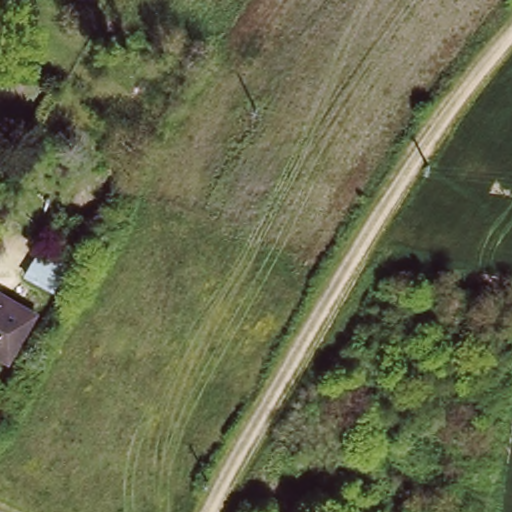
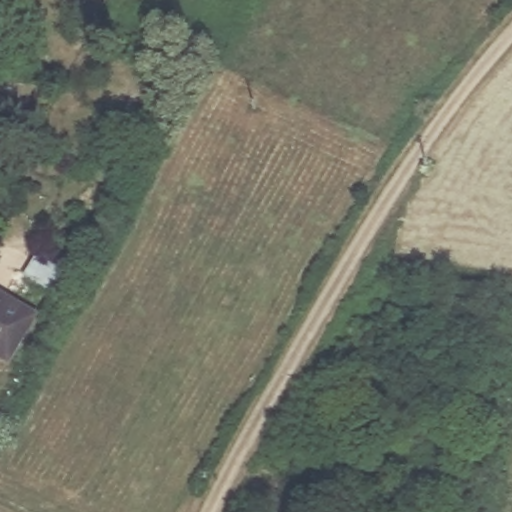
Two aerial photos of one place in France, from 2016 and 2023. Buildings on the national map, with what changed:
unchanged [(105,13),(104,33),(70,31),(71,11),(105,13)]
unchanged [(49,262),(74,276),(64,297),(38,283),(49,262)]
unchanged [(42,320),(11,364),(0,358),(0,296),(42,320)]

